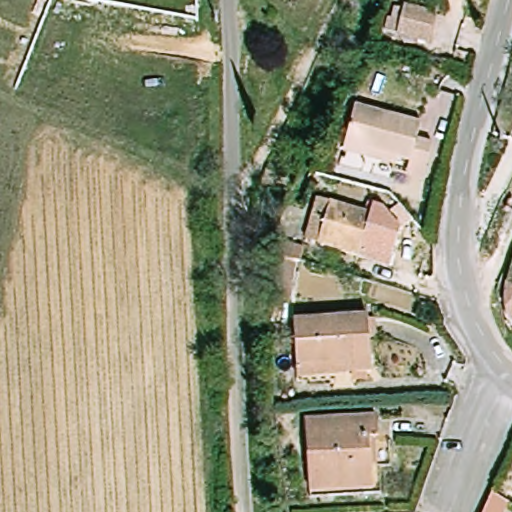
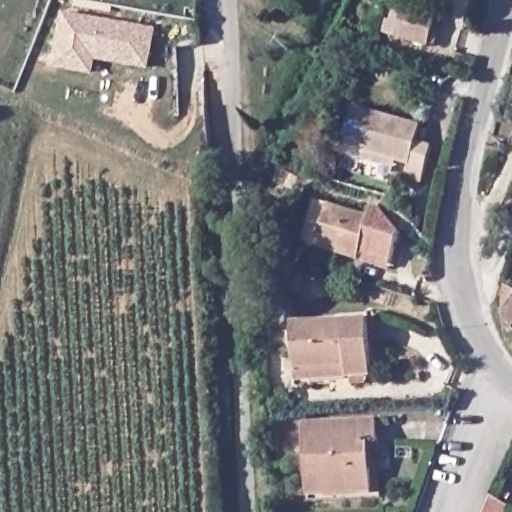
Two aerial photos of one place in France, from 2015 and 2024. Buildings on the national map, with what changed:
unchanged [(438,14),(432,40),(399,33),(405,7),(438,14)]
new [(97,61),(93,76),(52,68),(62,13),(158,30),(150,71),(97,61)]
unchanged [(402,167),(348,156),(350,150),(359,109),(423,122),(421,141),(436,145),(430,178),(414,175),(400,172),(402,167)]
unchanged [(361,262),(317,254),(327,219),(370,228),(361,262)]
new [(512,289),(512,328),(506,321),(506,301),(507,286),(512,289)]
unchanged [(371,319),(373,381),(298,384),(295,324),(371,319)]
unchanged [(307,420),(378,417),(379,438),(369,439),(370,483),(310,487),(307,420)]
unchanged [(370,483),(369,439),(379,438),(379,445),(389,445),(392,460),(381,460),(383,496),(310,500),(310,487),(370,483)]
unchanged [(491,496),(505,504),(502,512),(483,512),(491,496)]

